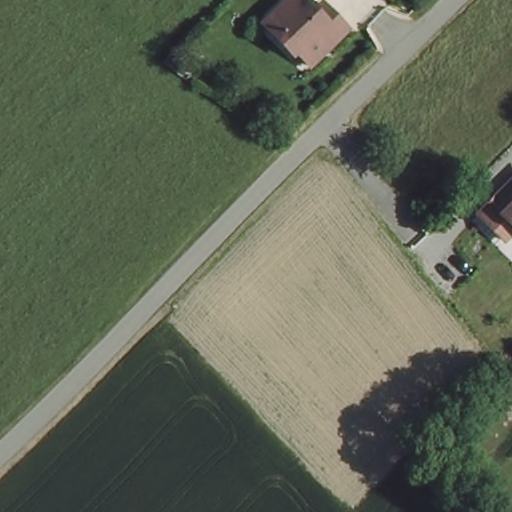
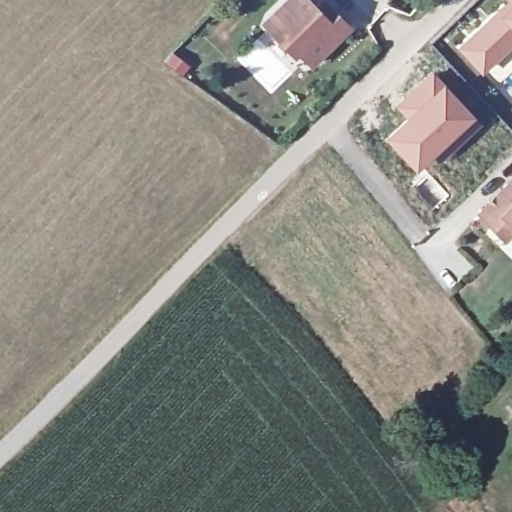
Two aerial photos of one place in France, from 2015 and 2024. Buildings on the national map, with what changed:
unchanged [(299,51),(295,55),(278,38),(284,33),(270,19),(289,0),(308,0),(318,10),(326,2),(351,29),(313,65),(299,51)]
new [(512,0),(512,29),(497,10),(510,0),(512,0)]
new [(497,10),(512,29),(512,48),(480,72),(457,47),(497,10)]
new [(404,116),(395,106),(433,70),(482,122),(438,161),(431,155),(415,169),(384,136),(404,116)]
unchanged [(506,237),(480,214),(512,180),(512,231),(506,237)]

